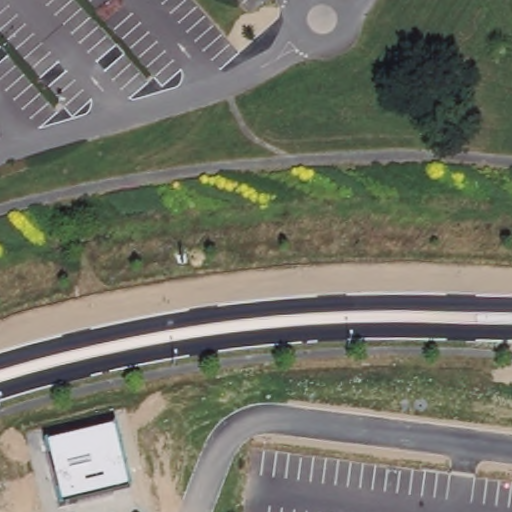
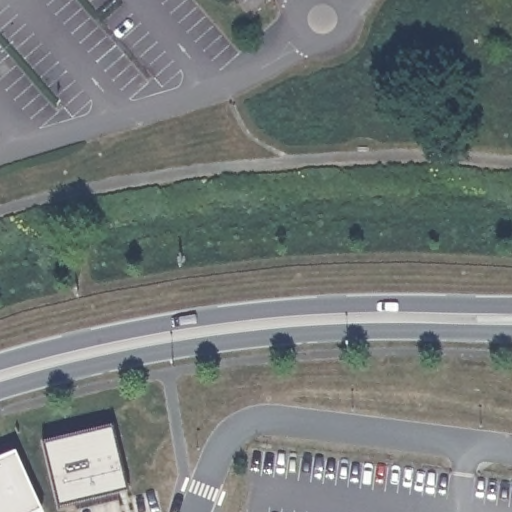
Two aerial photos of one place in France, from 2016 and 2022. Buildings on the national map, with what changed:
unchanged [(60,504),(47,445),(112,429),(127,490),(60,504)]
new [(17,452),(42,510),(37,512),(26,512),(2,458),(17,452)]
new [(2,458),(26,512),(0,512),(0,459),(2,458)]

